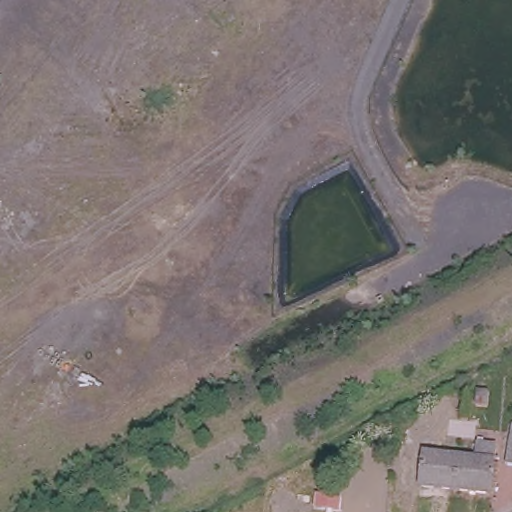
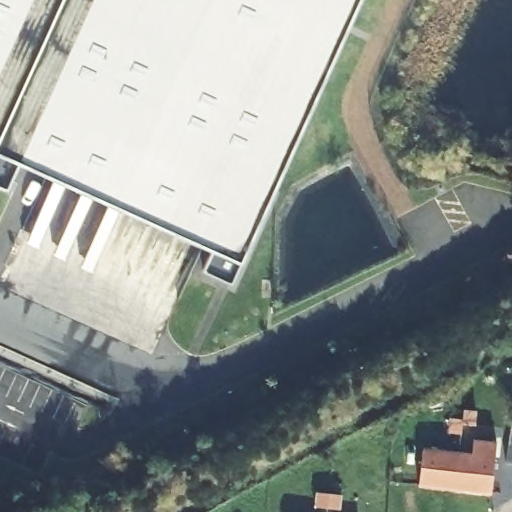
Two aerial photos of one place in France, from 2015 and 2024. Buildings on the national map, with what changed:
new [(0,166),(0,0),(362,0),(239,275),(0,166)]
unchanged [(507,438),(512,439),(512,465),(504,465),(507,438)]
unchanged [(451,453),(467,455),(469,440),(489,443),(483,493),(447,489),(451,453)]
unchanged [(413,485),(417,450),(451,453),(447,489),(413,485)]

